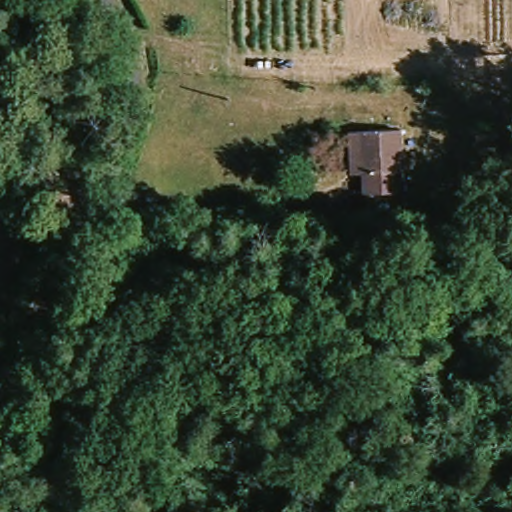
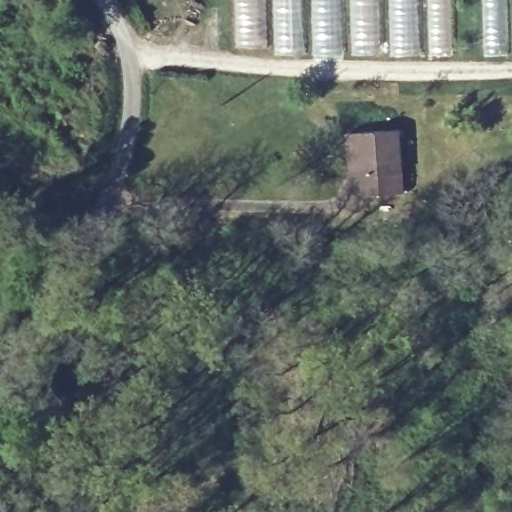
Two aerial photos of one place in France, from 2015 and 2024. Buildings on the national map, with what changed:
new [(236,0),(449,0),(450,55),(278,55),(277,46),(237,47),(236,0)]
new [(512,51),(485,51),(484,0),(512,0),(512,51)]
unchanged [(400,130),(404,193),(369,195),(368,173),(361,174),(348,175),(346,141),(354,141),(354,133),(400,130)]

